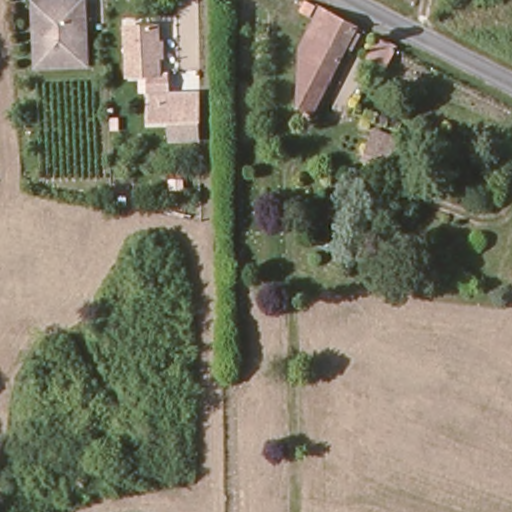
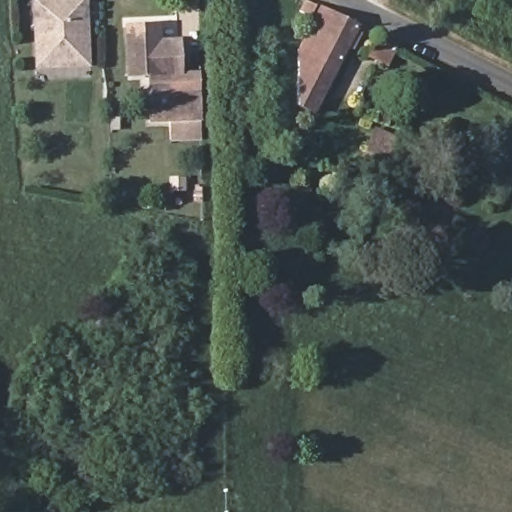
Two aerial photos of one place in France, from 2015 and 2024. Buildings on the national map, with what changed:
unchanged [(83,1),(85,66),(37,66),(36,37),(40,37),(41,24),(35,19),(35,8),(40,2),(83,1)]
unchanged [(322,6),(318,16),(308,11),(313,2),(322,6)]
unchanged [(349,20),(361,27),(318,115),(304,107),(305,53),(325,8),(349,20)]
unchanged [(200,120),(149,121),(149,93),(142,92),(141,73),(127,73),(125,24),(159,23),(161,92),(200,92),(200,120)]
unchanged [(397,37),(390,56),(370,47),(379,28),(397,37)]
unchanged [(372,133),(393,141),(385,160),(365,152),(372,133)]

